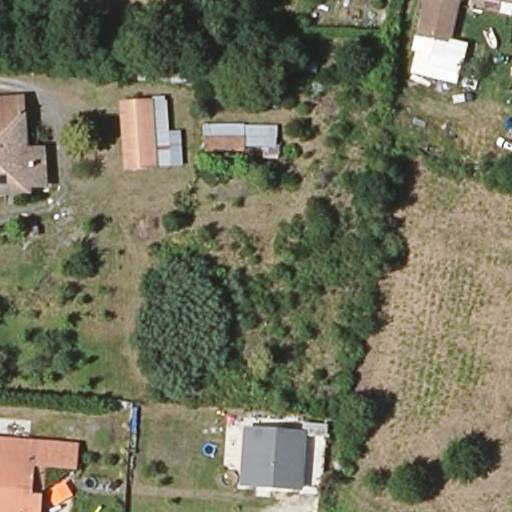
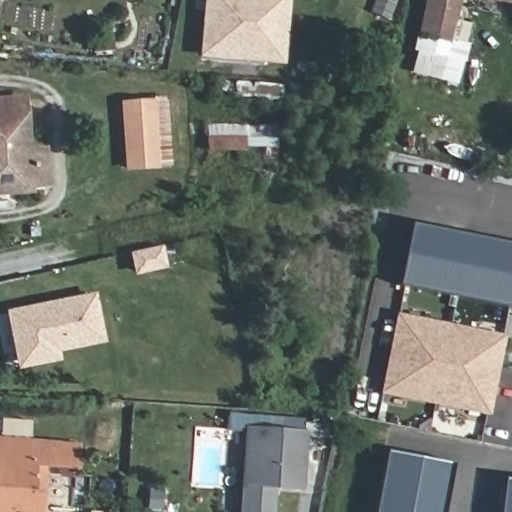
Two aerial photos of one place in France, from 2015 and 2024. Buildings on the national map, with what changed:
new [(283,0),(281,11),(259,9),(255,57),(198,52),(203,0),(283,0)]
unchanged [(497,0),(512,0),(512,1),(511,3),(497,0)]
unchanged [(416,64),(429,3),(456,9),(443,70),(416,64)]
new [(259,9),(281,11),(277,59),(255,57),(259,9)]
unchanged [(0,104),(29,103),(31,154),(52,153),(53,188),(0,191),(0,104)]
unchanged [(131,170),(125,108),(166,104),(172,166),(131,170)]
unchanged [(218,126),(278,127),(278,156),(217,154),(218,126)]
new [(397,285),(409,225),(512,246),(512,308),(397,285)]
new [(155,246),(160,265),(133,272),(129,253),(155,246)]
new [(39,306),(40,310),(55,307),(54,302),(90,294),(100,339),(52,350),(51,345),(14,353),(6,312),(39,306)]
new [(505,335),(488,417),(377,394),(393,313),(505,335)]
new [(244,427),(307,432),(303,491),(274,489),(273,512),(239,512),(244,427)]
demolished [(242,480),(245,431),(321,438),(315,487),(242,480)]
unchanged [(0,443),(71,449),(69,467),(41,465),(36,512),(0,512),(0,443)]
new [(381,447),(449,460),(440,512),(369,512),(381,447)]
new [(499,475),(512,477),(512,512),(495,512),(499,475)]

